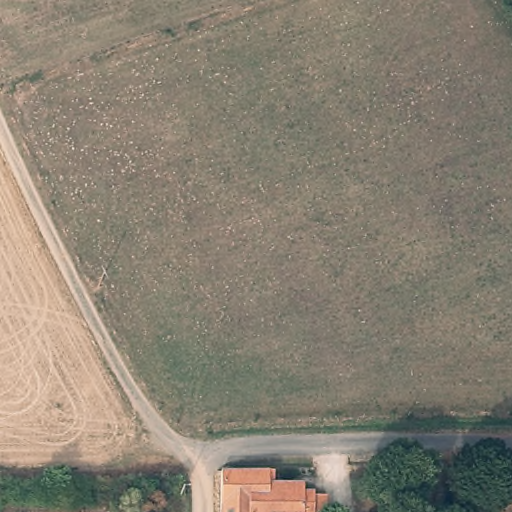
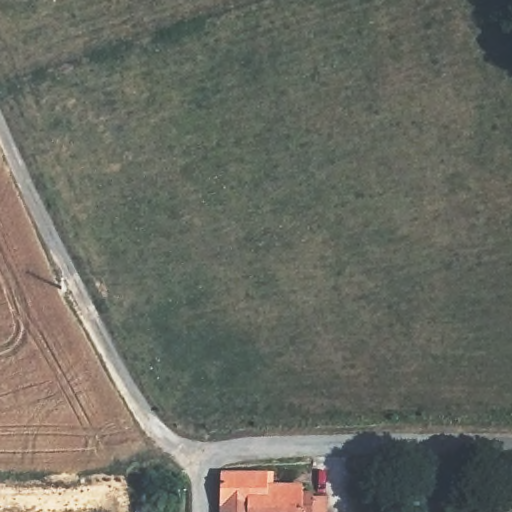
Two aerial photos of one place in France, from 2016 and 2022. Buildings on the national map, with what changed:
unchanged [(217,473),(239,473),(262,473),(266,473),(270,473),(269,486),(299,486),(298,495),(309,495),(308,512),(214,512),(215,508),(217,473)]

